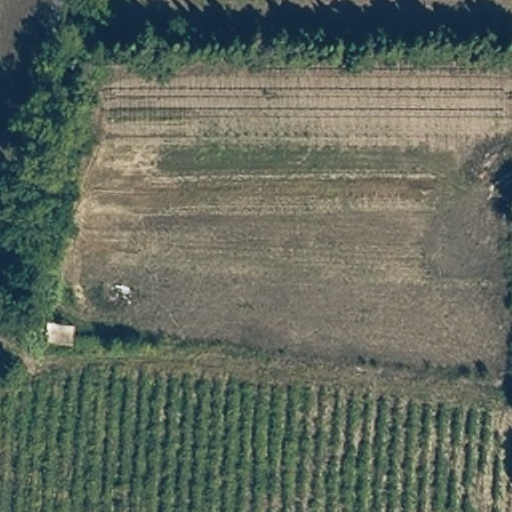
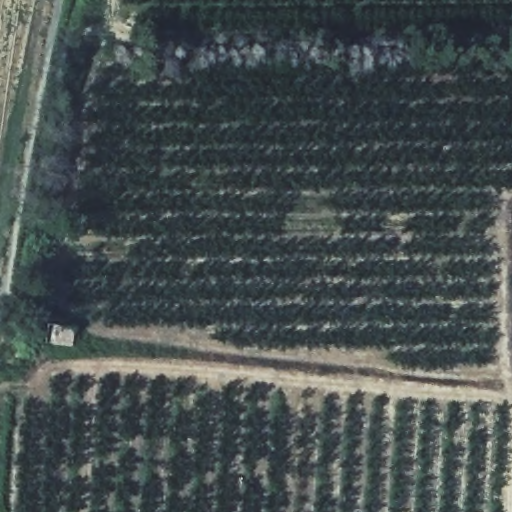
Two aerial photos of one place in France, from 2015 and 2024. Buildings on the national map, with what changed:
unchanged [(43,333),(73,338),(70,354),(34,348),(43,333)]

